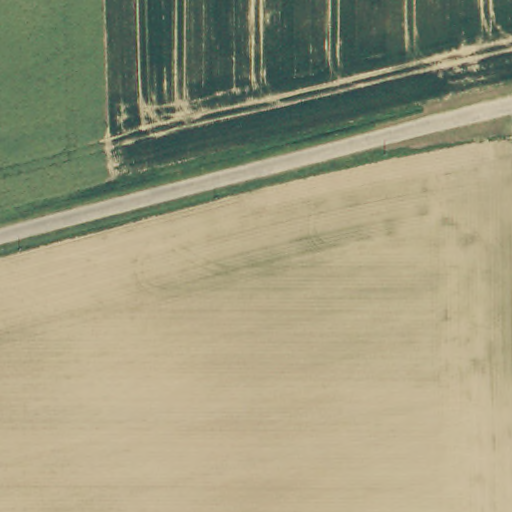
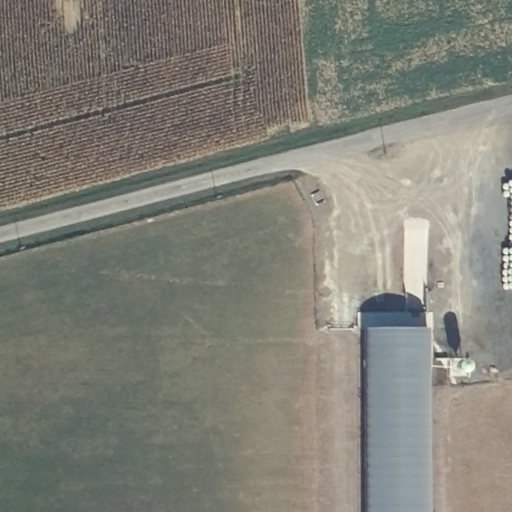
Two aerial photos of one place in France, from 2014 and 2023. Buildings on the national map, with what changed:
new [(428,330),(427,512),(362,512),(362,329),(428,330)]

